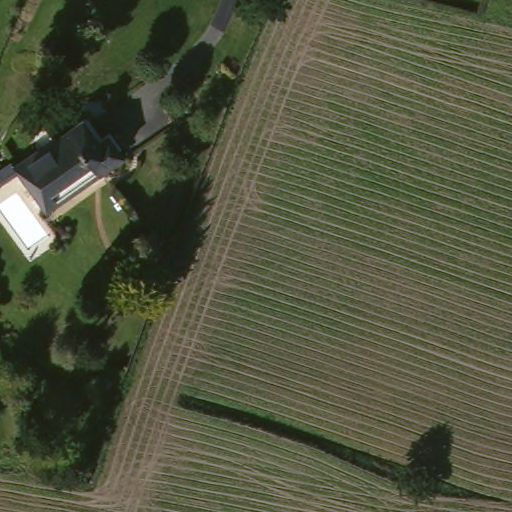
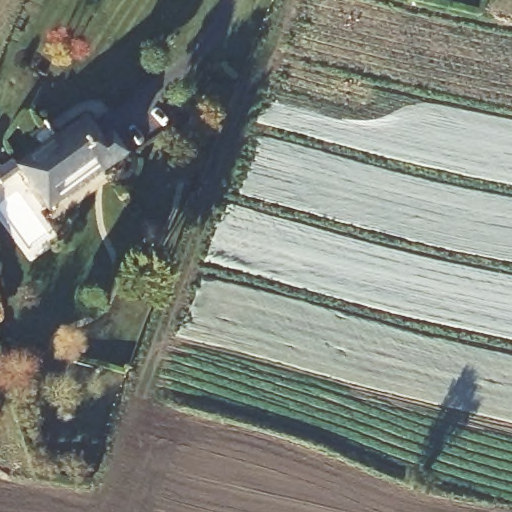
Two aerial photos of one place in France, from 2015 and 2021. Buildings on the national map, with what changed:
unchanged [(101,168),(95,160),(61,184),(66,192),(48,205),(20,166),(19,166),(1,180),(0,179),(0,164),(11,155),(15,160),(42,140),(46,145),(87,116),(101,135),(110,129),(126,149),(101,168)]

